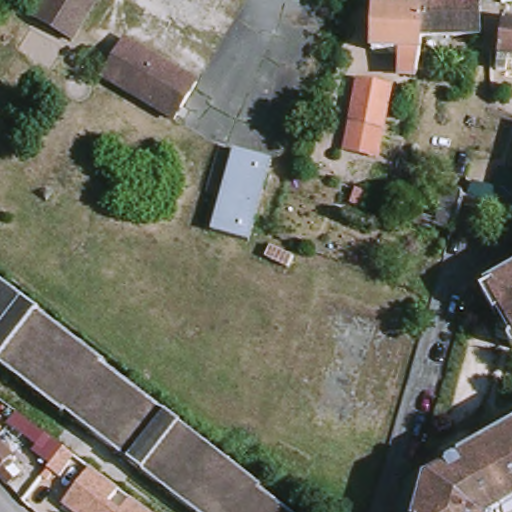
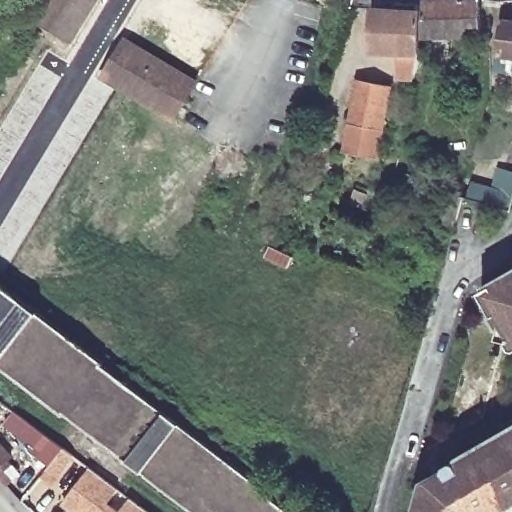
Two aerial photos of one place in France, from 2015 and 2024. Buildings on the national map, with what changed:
unchanged [(76,27),(69,40),(32,18),(40,6),(44,0),(93,0),(76,27)]
unchanged [(421,6),(479,4),(480,41),(420,42),(421,9),(421,6)]
unchanged [(400,57),(372,56),(374,12),(394,13),(395,7),(421,9),(420,42),(419,58),(415,77),(398,77),(400,57)]
unchanged [(506,72),(498,71),(504,20),(512,21),(512,57),(508,56),(506,72)]
unchanged [(199,83),(198,83),(199,83),(176,121),(141,100),(102,76),(124,39),(179,71),(199,83)]
unchanged [(358,86),(388,93),(375,151),(374,158),(344,151),(346,139),(358,86)]
demolished [(213,230),(234,147),(274,159),(251,241),(213,230)]
unchanged [(415,228),(418,219),(436,225),(442,207),(409,197),(414,181),(462,196),(464,192),(469,194),(472,187),(492,193),(498,172),(506,174),(512,150),(512,195),(508,211),(462,197),(450,237),(435,232),(434,234),(415,228)]
unchanged [(512,354),(510,353),(507,346),(509,345),(505,333),(496,318),(493,320),(480,296),(512,279),(512,354)]
unchanged [(163,512),(0,385),(0,296),(278,512),(163,512)]
unchanged [(512,427),(512,512),(413,512),(422,478),(512,427)]
unchanged [(20,501),(6,485),(0,479),(0,447),(10,459),(14,456),(25,468),(36,481),(20,501)]
unchanged [(55,480),(44,472),(60,452),(70,460),(55,480)]
unchanged [(70,512),(64,507),(91,473),(142,512),(70,512)]

